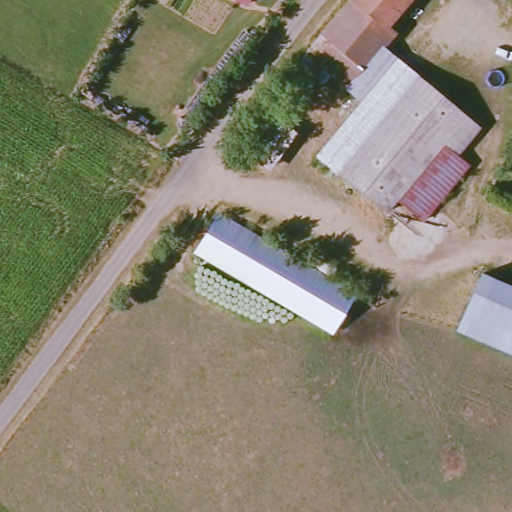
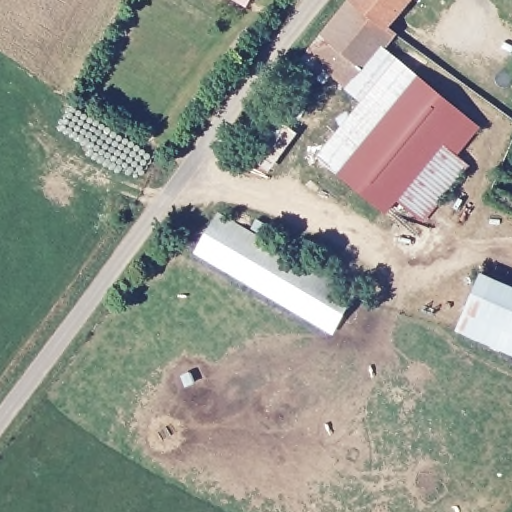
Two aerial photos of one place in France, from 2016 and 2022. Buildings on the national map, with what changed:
unchanged [(234,0),(248,0),(245,6),(234,0)]
unchanged [(293,58),(303,46),(341,0),(400,0),(380,24),(388,30),(378,44),(392,55),(374,76),(370,73),(357,87),(348,86),(328,69),(319,79),(293,58)]
unchanged [(374,76),(392,55),(413,71),(329,169),(312,151),(374,76)]
unchanged [(392,195),(380,207),(333,169),(413,71),(475,122),(451,150),(463,161),(418,215),(392,195)]
unchanged [(201,252),(223,215),(359,295),(338,331),(201,252)]
unchanged [(457,330),(481,274),(512,287),(512,354),(457,330)]

